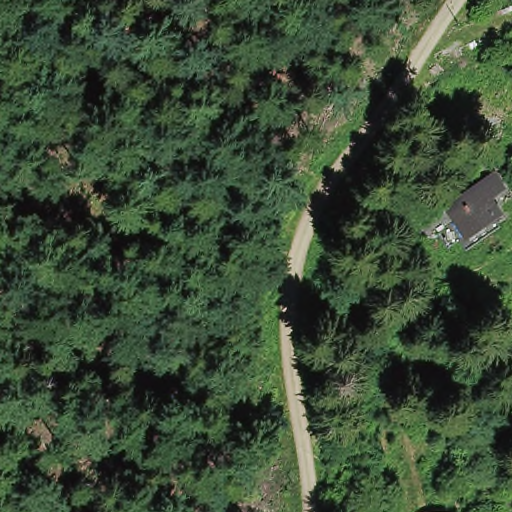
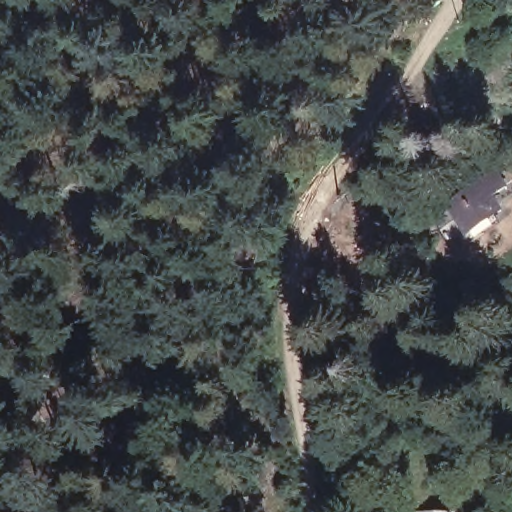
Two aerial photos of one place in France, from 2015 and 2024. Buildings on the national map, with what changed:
unchanged [(445,210),(490,176),(500,190),(485,202),(495,215),(465,237),(445,210)]

